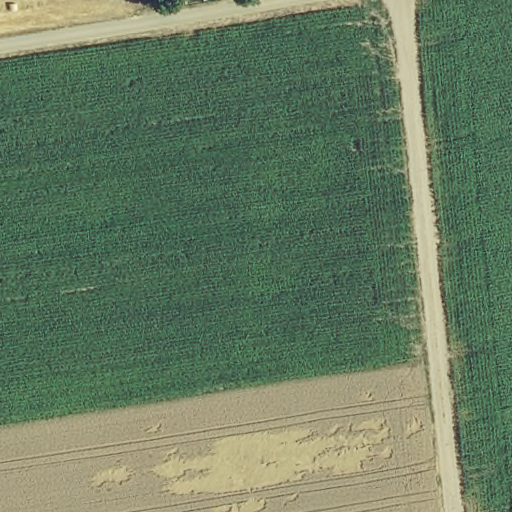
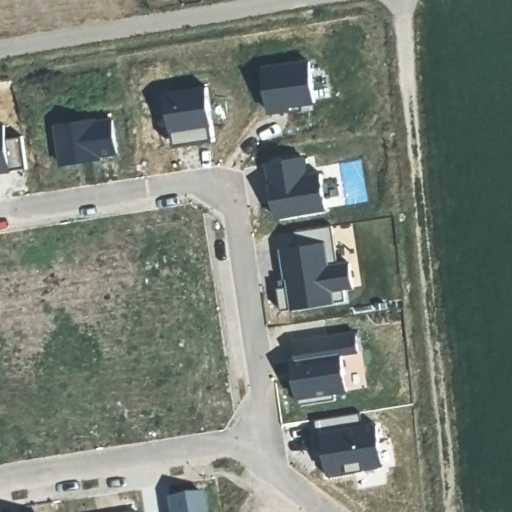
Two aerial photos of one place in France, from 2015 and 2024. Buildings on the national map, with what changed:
new [(309,59),(315,105),(268,113),(261,65),(309,59)]
new [(206,85),(215,141),(174,147),(164,91),(206,85)]
new [(112,116),(119,156),(57,166),(51,122),(112,116)]
new [(4,122),(6,137),(21,136),(26,167),(0,173),(0,123),(4,122)]
new [(305,154),(310,172),(319,170),(327,211),(273,220),(263,162),(305,154)]
new [(283,282),(277,245),(294,242),(292,231),(330,226),(335,255),(332,256),(332,263),(350,261),(355,289),(347,291),(349,301),(280,311),(276,283),(283,282)]
new [(356,328),(359,352),(343,355),(293,360),(290,338),(356,328)]
new [(293,360),(343,355),(348,392),(296,402),(290,361),(293,360)]
new [(359,411),(362,423),(376,421),(383,467),(325,476),(315,419),(359,411)]
new [(205,492),(208,512),(167,512),(165,497),(205,492)]

